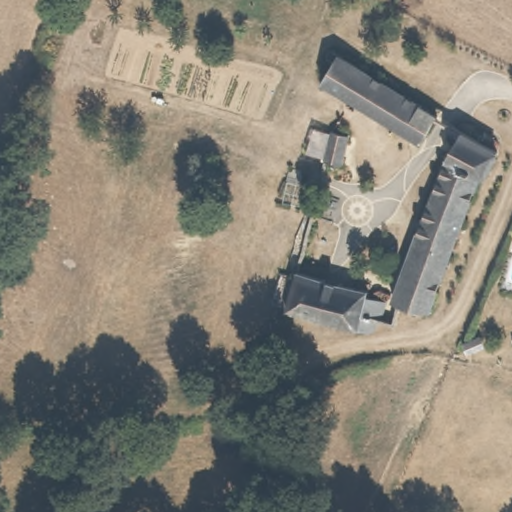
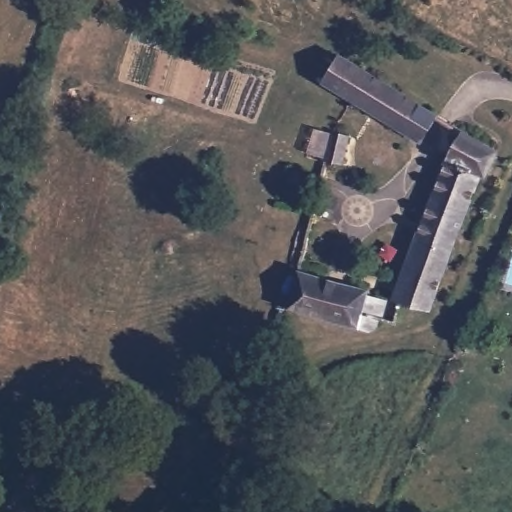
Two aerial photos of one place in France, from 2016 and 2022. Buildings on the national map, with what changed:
unchanged [(321,81),(338,56),(356,67),(437,116),(420,143),(341,94),(321,81)]
unchanged [(335,130),(353,136),(344,165),(328,161),(329,156),(309,151),(317,125),(335,130)]
unchanged [(404,301),(395,298),(425,218),(451,152),(466,130),(502,152),(487,178),(482,175),(456,239),(431,309),(404,301)]
unchanged [(341,169),(338,184),(322,180),(327,165),(341,169)]
unchanged [(377,321),(376,325),(376,326),(373,329),(368,329),(364,328),(357,325),(356,327),(292,310),(288,309),(298,270),(369,290),(368,295),(387,301),(382,322),(377,321)]

